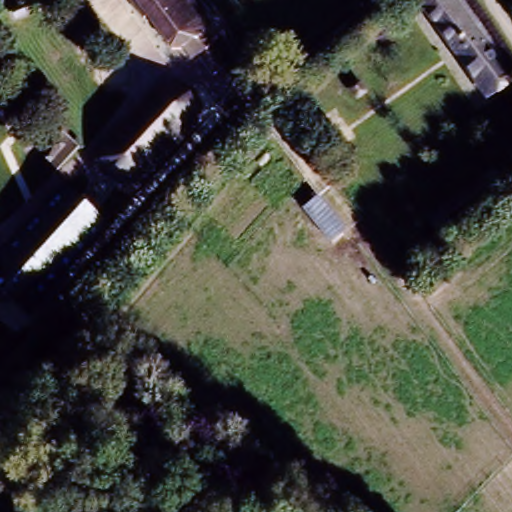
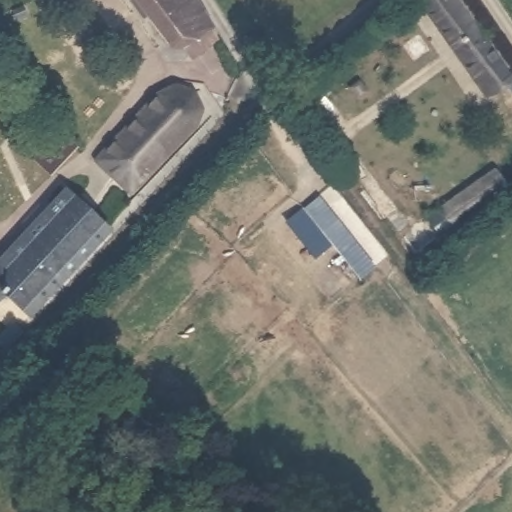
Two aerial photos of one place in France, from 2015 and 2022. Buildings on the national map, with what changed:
unchanged [(205,28),(176,48),(167,45),(143,17),(139,20),(123,0),(190,0),(195,6),(205,28)]
unchanged [(495,94),(491,96),(486,100),(416,0),(454,0),(510,83),(495,94)]
unchanged [(185,96),(194,112),(186,129),(125,194),(90,163),(151,97),(167,89),(185,96)]
unchanged [(450,232),(436,212),(491,174),(506,194),(450,232)]
unchanged [(8,251),(64,188),(108,227),(30,313),(5,291),(0,297),(0,258),(5,264),(13,255),(8,251)]
new [(348,232),(333,246),(303,213),(318,200),(348,232)]
new [(283,223),(300,208),(303,213),(331,244),(315,259),(283,223)]

